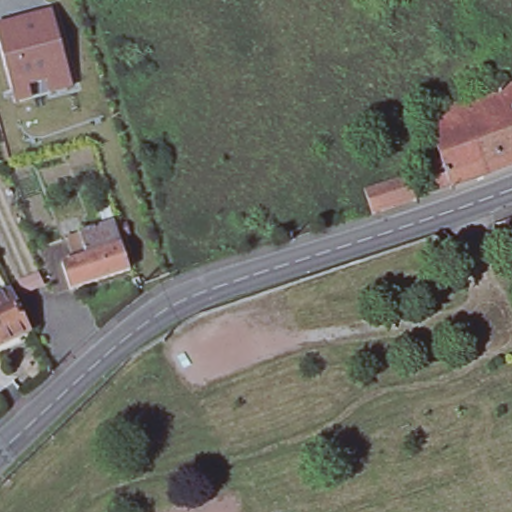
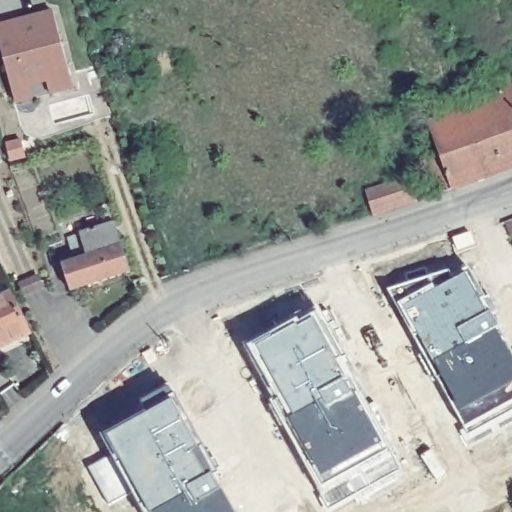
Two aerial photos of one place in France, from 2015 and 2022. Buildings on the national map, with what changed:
unchanged [(73,89),(15,104),(0,34),(0,20),(55,11),(73,89)]
unchanged [(444,157),(430,120),(512,89),(512,170),(456,191),(444,195),(441,196),(440,197),(434,200),(422,165),(444,157)]
unchanged [(362,196),(405,179),(415,205),(371,221),(362,196)]
unchanged [(75,293),(67,268),(85,263),(79,243),(123,231),(136,275),(75,293)]
unchanged [(31,331),(0,346),(0,299),(12,292),(31,331)]
new [(315,317),(400,473),(333,512),(327,512),(247,348),(315,317)]
new [(170,397),(231,512),(132,512),(90,439),(170,397)]

